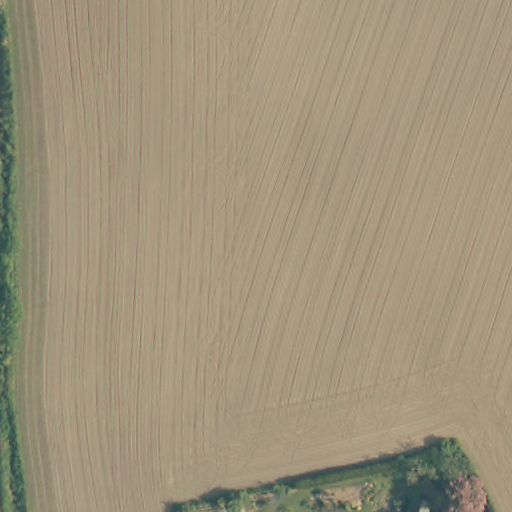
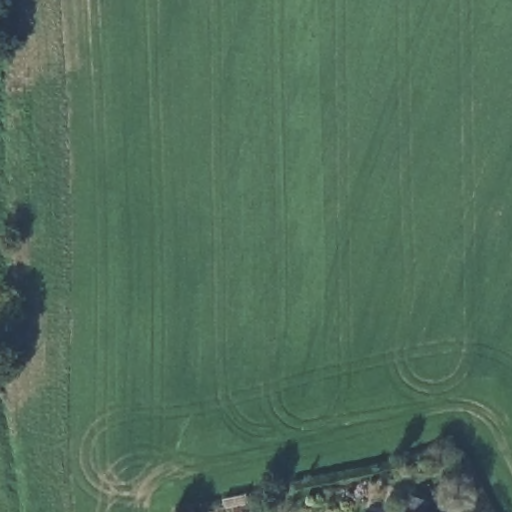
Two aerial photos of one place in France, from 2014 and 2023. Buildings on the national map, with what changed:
unchanged [(414,497),(432,502),(429,512),(409,512),(414,497)]

